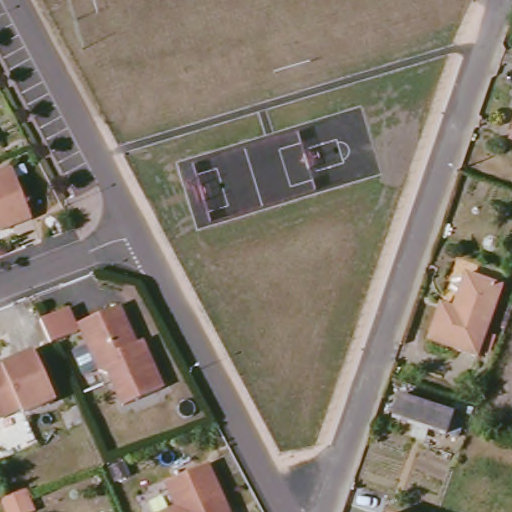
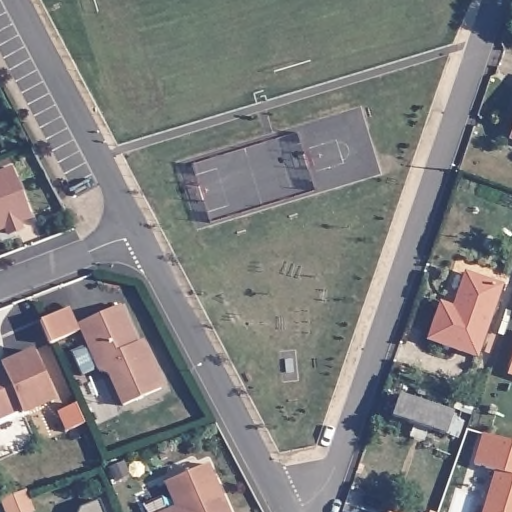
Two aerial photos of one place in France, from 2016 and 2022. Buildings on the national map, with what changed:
unchanged [(512,121),(512,143),(505,140),(512,121)]
unchanged [(26,217),(7,225),(8,229),(0,233),(0,176),(9,173),(26,217)]
unchanged [(435,305),(448,309),(460,274),(498,289),(470,358),(421,339),(435,305)]
unchanged [(136,353),(143,350),(159,389),(119,406),(106,376),(96,372),(76,325),(117,307),(136,353)]
unchanged [(65,310),(75,333),(47,345),(38,322),(65,310)]
unchanged [(19,418),(17,414),(0,422),(0,370),(31,356),(52,404),(19,418)]
new [(512,361),(512,376),(508,374),(512,361)]
unchanged [(450,414),(441,440),(390,421),(399,396),(450,414)]
new [(483,512),(496,470),(474,463),(484,432),(512,441),(512,512),(483,512)]
unchanged [(160,484),(203,466),(222,512),(166,512),(170,510),(160,484)]
unchanged [(29,511),(26,512),(2,512),(0,506),(0,499),(22,491),(29,511)]

